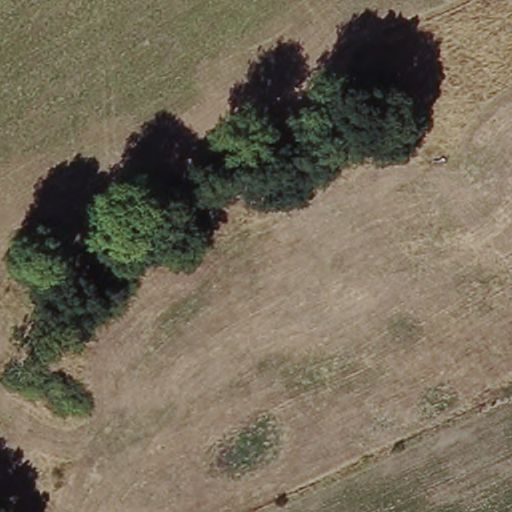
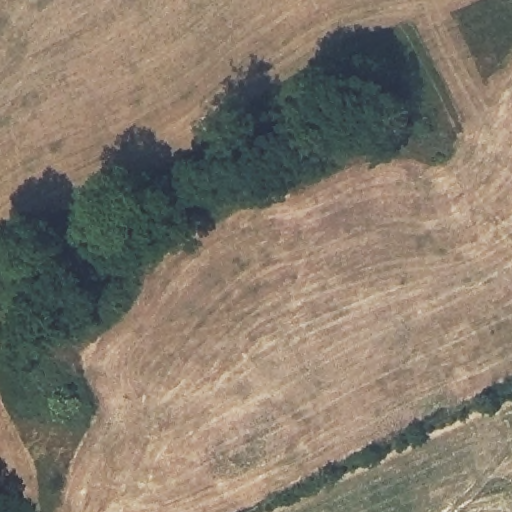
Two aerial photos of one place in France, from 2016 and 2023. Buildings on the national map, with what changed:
[]

